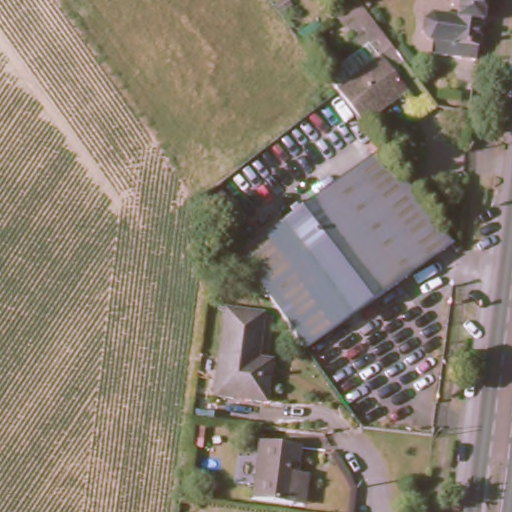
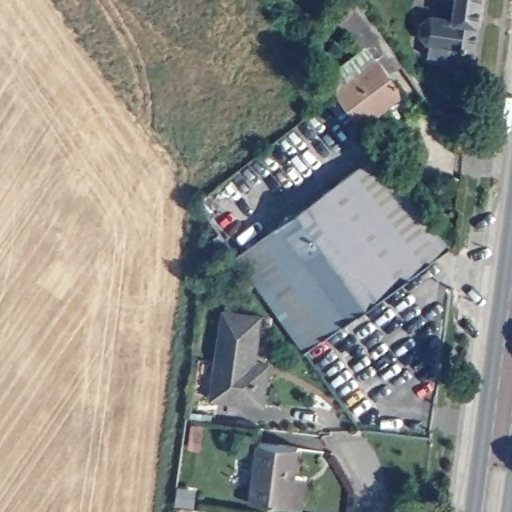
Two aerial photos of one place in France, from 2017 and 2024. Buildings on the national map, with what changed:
unchanged [(433,41),(429,39),(427,35),(425,31),(426,19),(436,11),(457,15),(459,0),(485,0),(479,59),(432,54),(433,41)]
unchanged [(359,5),(393,50),(383,57),(349,11),(359,5)]
unchanged [(409,91),(363,125),(337,90),(383,57),(409,91)]
unchanged [(389,288),(323,195),(381,149),(451,242),(389,288)]
unchanged [(254,243),(323,195),(389,288),(322,336),(254,243)]
unchanged [(305,349),(237,255),(254,243),(322,336),(305,349)]
unchanged [(265,378),(261,405),(214,398),(226,311),(260,315),(253,361),(267,363),(265,378)]
unchanged [(247,498),(255,441),(299,446),(295,473),(308,475),(304,505),(291,503),(247,498)]

